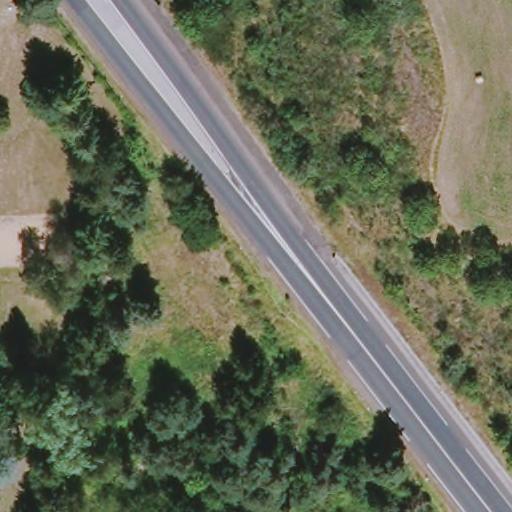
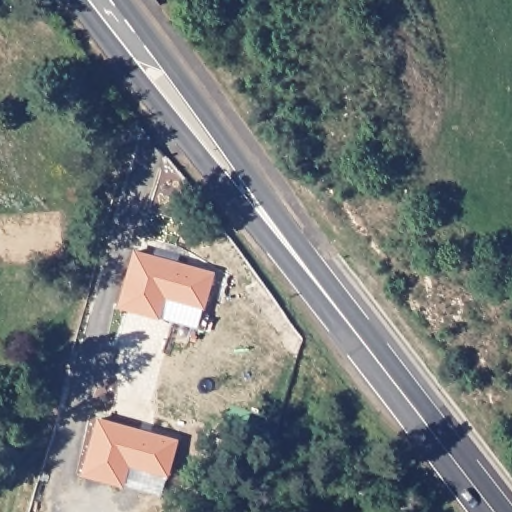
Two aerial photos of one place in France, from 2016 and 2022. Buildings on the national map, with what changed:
new [(136,250),(214,273),(206,310),(168,298),(161,320),(119,307),(136,250)]
new [(131,466),(124,487),(83,474),(99,418),(179,439),(171,476),(131,466)]

